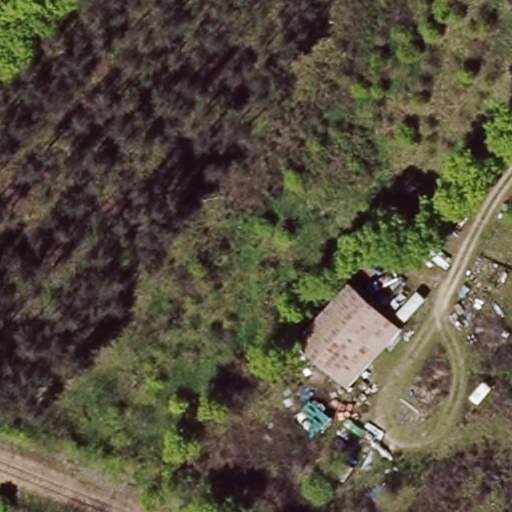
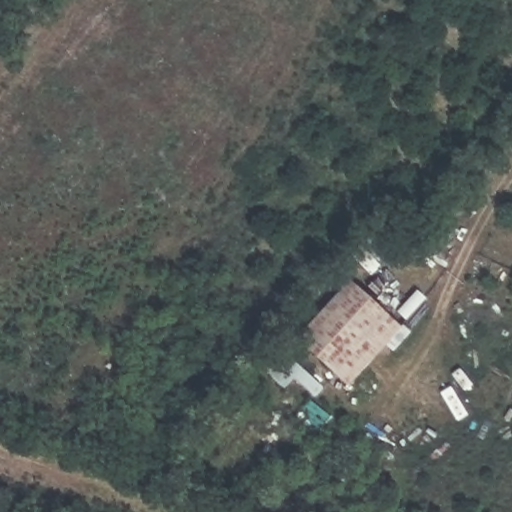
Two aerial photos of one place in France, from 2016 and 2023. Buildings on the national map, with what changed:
unchanged [(294,337),(347,278),(399,325),(347,385),(294,337)]

